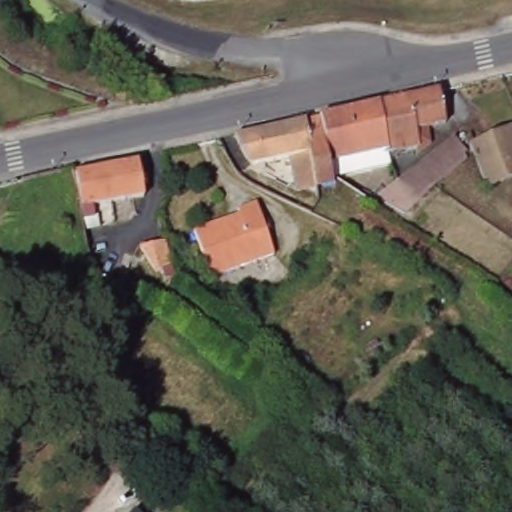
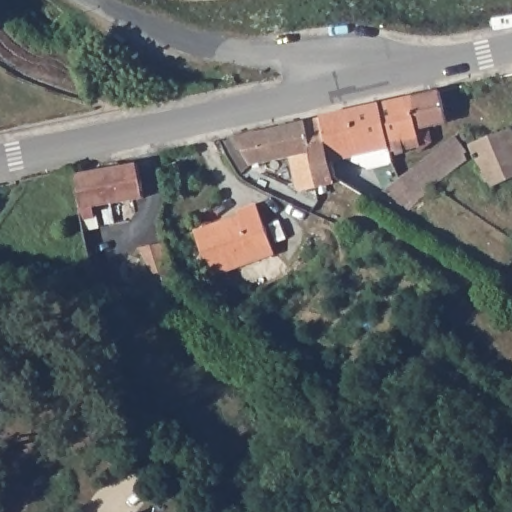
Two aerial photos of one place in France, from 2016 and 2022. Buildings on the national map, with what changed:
unchanged [(389,129),(418,124),(414,95),(432,90),(445,87),(449,120),(432,125),(434,139),(424,149),(422,144),(392,149),(391,145),(389,129)]
unchanged [(414,95),(418,124),(389,129),(391,145),(334,159),(326,118),(326,116),(414,95)]
unchanged [(276,129),(323,119),(337,181),(303,189),(293,155),(255,165),(241,137),(276,129)]
unchanged [(404,172),(417,167),(457,135),(469,149),(474,149),(469,134),(475,131),(479,141),(512,129),(512,179),(490,188),(481,159),(473,161),(469,154),(433,184),(437,188),(422,203),(419,205),(394,160),(404,172)]
unchanged [(394,160),(419,205),(410,217),(407,220),(357,190),(394,160)]
unchanged [(79,173),(111,168),(142,164),(147,195),(118,199),(95,203),(97,215),(87,216),(84,204),(86,203),(79,173)]
unchanged [(256,206),(272,258),(208,278),(194,232),(216,225),(239,217),(238,212),(256,206)]
unchanged [(164,240),(171,269),(155,271),(140,245),(164,240)]

